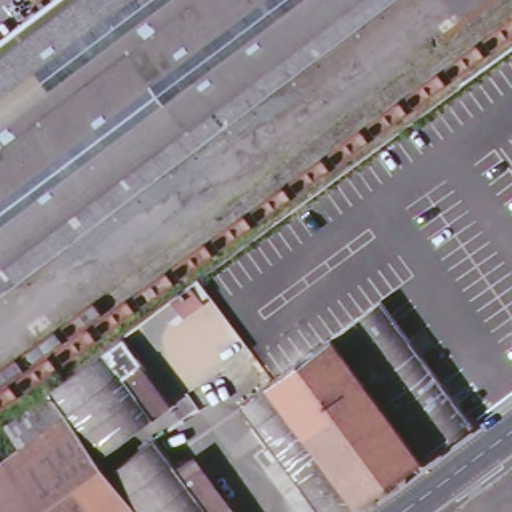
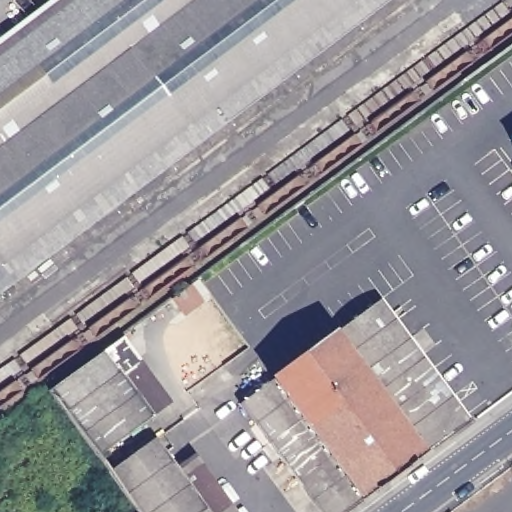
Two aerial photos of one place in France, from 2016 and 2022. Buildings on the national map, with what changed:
unchanged [(395,0),(0,296),(0,58),(78,0),(395,0)]
unchanged [(204,304),(185,318),(173,302),(190,288),(204,304)]
unchanged [(375,294),(467,418),(465,419),(340,512),(320,512),(235,398),(375,294)]
unchanged [(142,362),(124,376),(152,416),(98,456),(59,403),(49,389),(123,335),(142,362)]
demolished [(0,455),(18,441),(4,421),(49,389),(59,403),(98,456),(109,470),(129,498),(139,512),(0,512),(0,455)]
unchanged [(179,469),(210,512),(139,512),(129,498),(109,470),(155,437),(179,469)]
unchanged [(195,457),(235,512),(210,512),(179,469),(195,457)]

